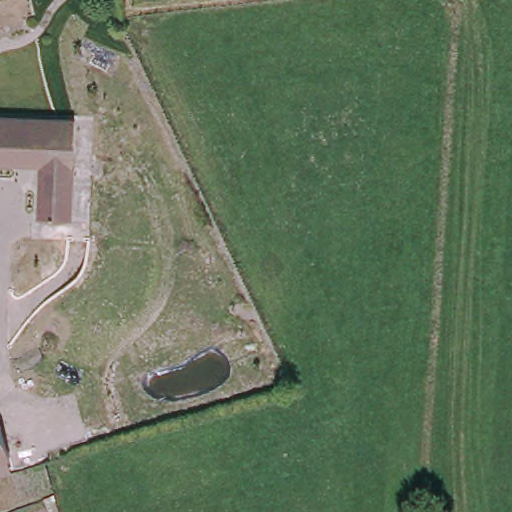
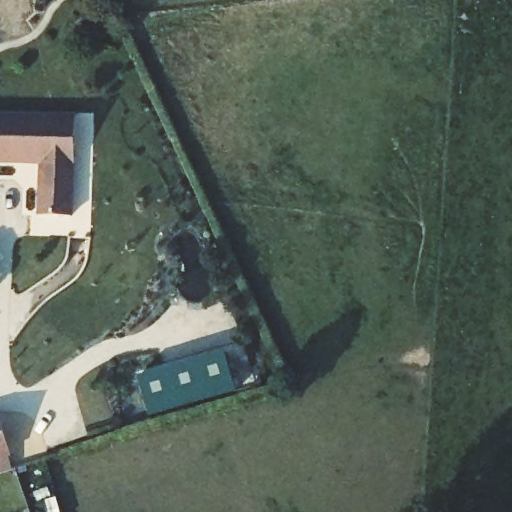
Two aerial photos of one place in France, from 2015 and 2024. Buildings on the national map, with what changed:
unchanged [(81,118),(80,162),(79,162),(78,216),(49,215),(50,162),(0,161),(0,116),(81,118)]
new [(226,353),(237,392),(150,417),(138,377),(226,353)]
unchanged [(3,413),(16,454),(0,459),(0,415),(3,413)]

